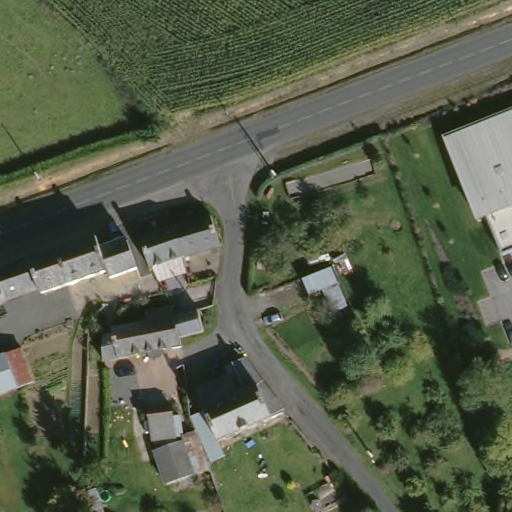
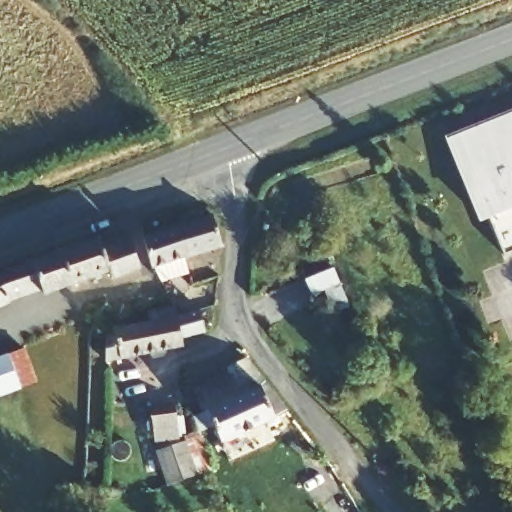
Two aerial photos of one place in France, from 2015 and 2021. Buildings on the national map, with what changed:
unchanged [(512,112),(512,251),(504,254),(489,214),(479,220),(443,140),(512,112)]
unchanged [(168,281),(159,266),(149,240),(185,230),(217,221),(227,245),(227,247),(194,256),(199,271),(168,281)]
unchanged [(134,241),(144,266),(118,276),(115,269),(71,286),(61,256),(104,240),(108,251),(134,241)]
unchanged [(42,290),(12,301),(14,306),(0,312),(0,279),(22,270),(22,269),(45,260),(46,262),(61,256),(71,286),(44,296),(42,290)]
unchanged [(337,267),(354,306),(339,313),(330,294),(318,299),(310,279),(337,267)]
unchanged [(190,313),(214,308),(219,336),(197,341),(198,346),(117,362),(119,336),(129,334),(129,332),(128,327),(162,321),(160,310),(187,304),(190,313)]
unchanged [(14,355),(34,347),(46,380),(29,386),(28,387),(28,386),(0,397),(0,359),(13,353),(13,354),(14,355)]
unchanged [(263,395),(284,417),(284,418),(287,422),(275,427),(216,452),(195,399),(234,383),(230,373),(240,368),(263,395)]
unchanged [(183,411),(187,443),(164,447),(160,415),(183,411)]

